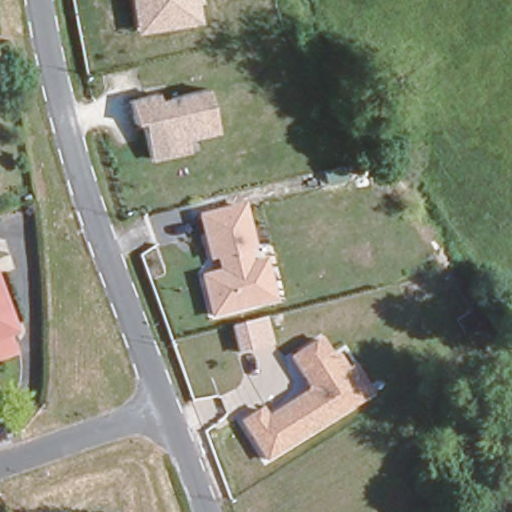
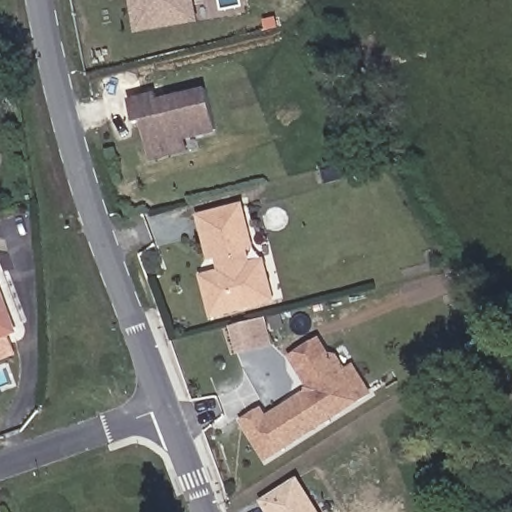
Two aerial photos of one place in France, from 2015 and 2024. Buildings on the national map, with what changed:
unchanged [(133,34),(128,0),(195,0),(199,23),(133,34)]
unchanged [(184,141),(188,154),(149,162),(139,124),(133,125),(128,99),(154,94),(156,99),(206,89),(218,134),(184,141)]
unchanged [(209,320),(198,274),(217,270),(214,259),(207,262),(196,215),(243,203),(255,250),(248,252),(251,262),(265,259),(276,303),(209,320)]
unchanged [(0,292),(17,335),(0,342),(0,292)]
unchanged [(263,464),(237,422),(258,408),(265,416),(305,392),(306,386),(289,356),(319,339),(328,354),(338,356),(347,369),(354,364),(372,394),(263,464)]
new [(298,478),(319,512),(264,512),(257,503),(298,478)]

